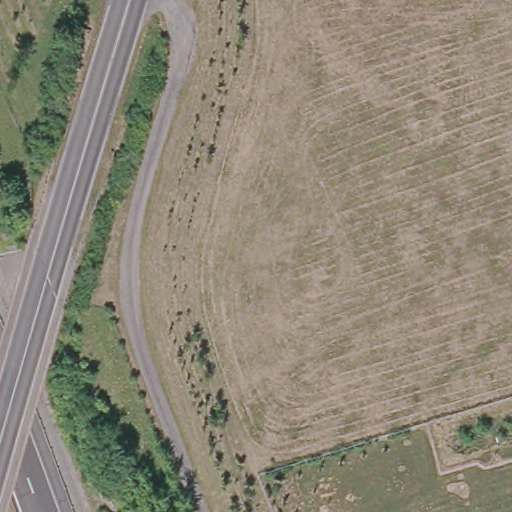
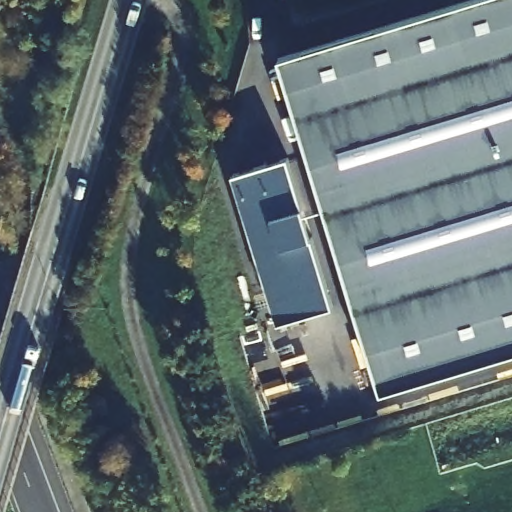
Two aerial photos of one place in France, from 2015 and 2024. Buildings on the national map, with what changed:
new [(282,45),(430,0),(512,0),(512,346),(379,387),(282,45)]
new [(332,296),(275,315),(233,165),(290,146),(332,296)]

